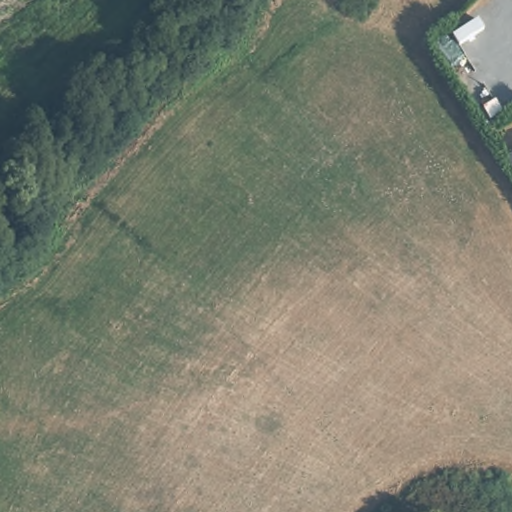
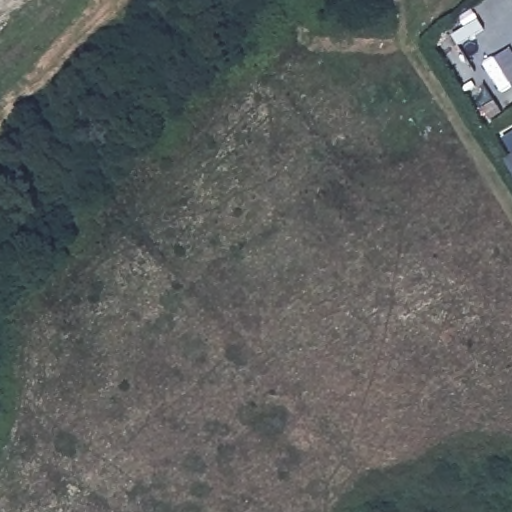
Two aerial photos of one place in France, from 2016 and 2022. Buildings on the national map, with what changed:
unchanged [(512,160),(512,177),(504,164),(512,160)]

